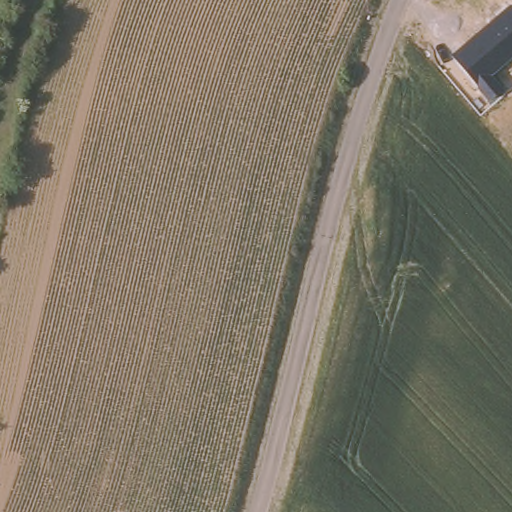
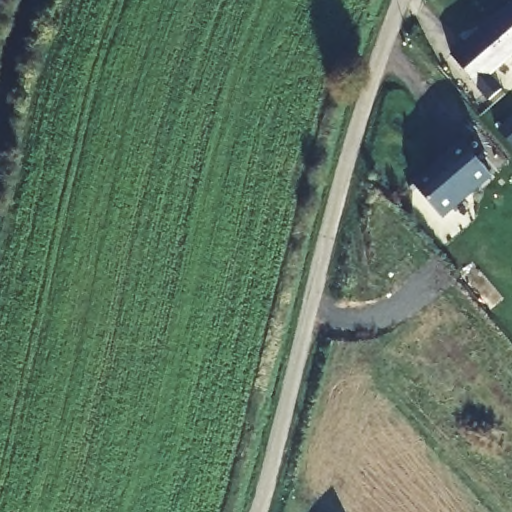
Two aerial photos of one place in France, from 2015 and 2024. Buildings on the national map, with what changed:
unchanged [(512,9),(512,61),(493,78),(506,92),(492,105),(455,56),(511,8),(512,9)]
new [(431,167),(432,168),(462,141),(491,174),(441,217),(412,183),(431,167)]

